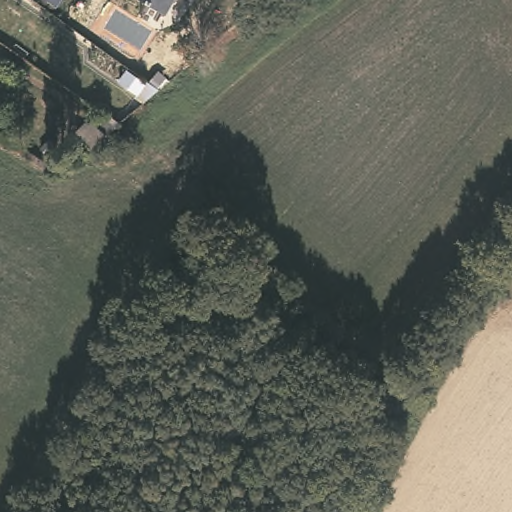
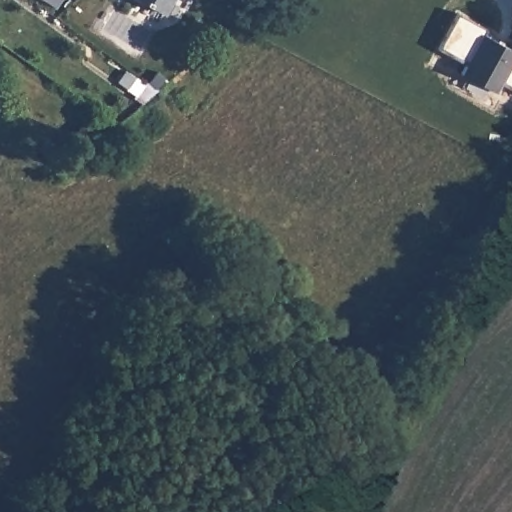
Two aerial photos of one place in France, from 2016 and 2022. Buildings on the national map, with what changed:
unchanged [(140,0),(174,0),(165,15),(140,0)]
new [(485,25),(481,32),(512,49),(512,83),(502,78),(495,90),(462,72),(467,61),(439,47),(458,13),(485,25)]
unchanged [(118,124),(109,133),(97,124),(104,115),(118,124)]

